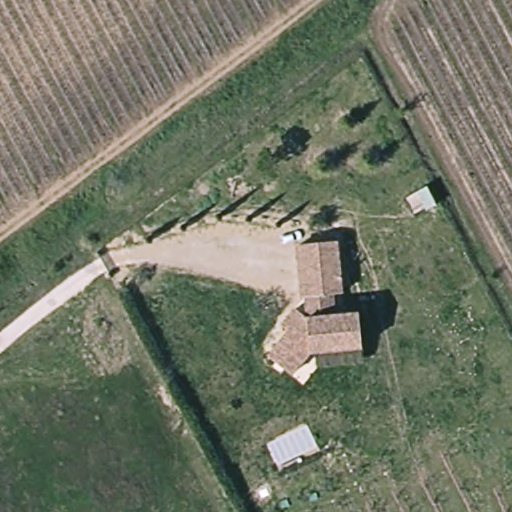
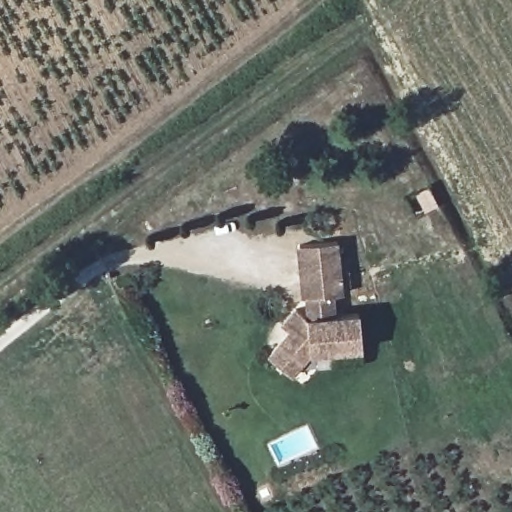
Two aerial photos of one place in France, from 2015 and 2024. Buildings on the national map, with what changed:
unchanged [(274,357),(284,344),(290,348),(299,337),(287,325),(301,309),(311,317),(308,296),(301,245),(341,240),(348,292),(336,293),(338,315),(364,313),(367,345),(317,351),(307,362),(297,374),(274,357)]

